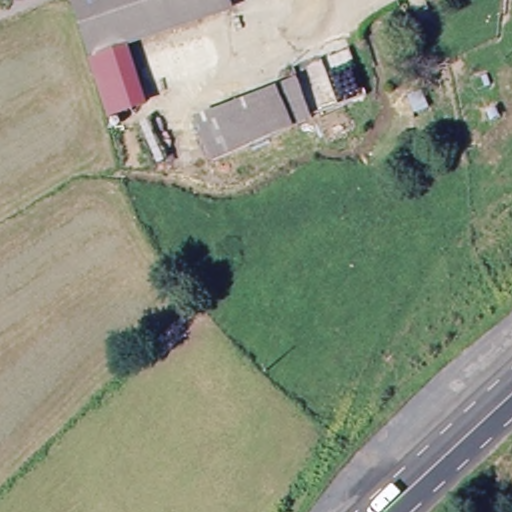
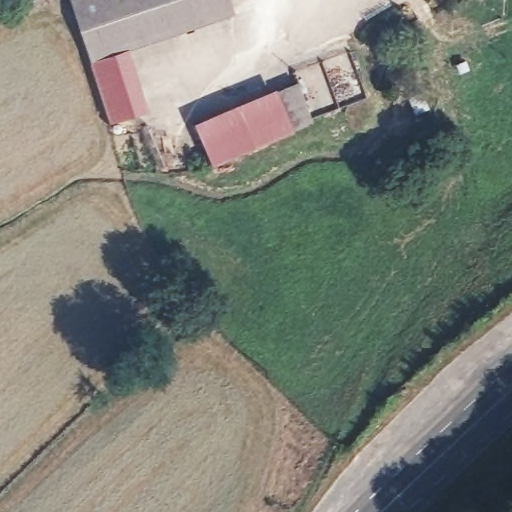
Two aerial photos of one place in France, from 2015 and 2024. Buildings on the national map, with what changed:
unchanged [(229,0),(90,49),(77,16),(62,2),(68,0),(229,0)]
unchanged [(132,46),(95,59),(90,49),(229,0),(230,0),(234,11),(132,46)]
unchanged [(115,108),(95,59),(132,46),(153,93),(115,108)]
unchanged [(300,85),(313,120),(288,129),(274,94),(300,85)]
unchanged [(198,121),(274,94),(288,129),(213,156),(198,121)]

